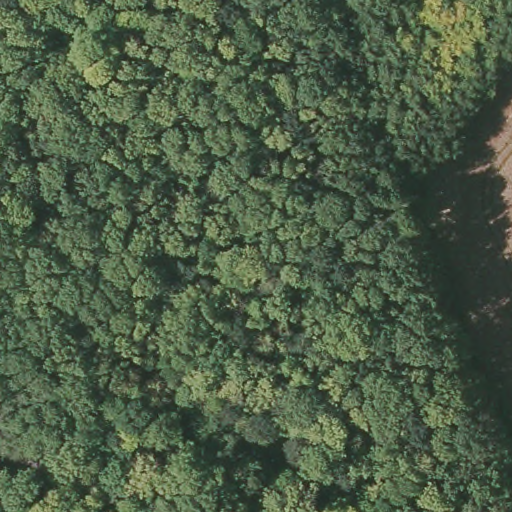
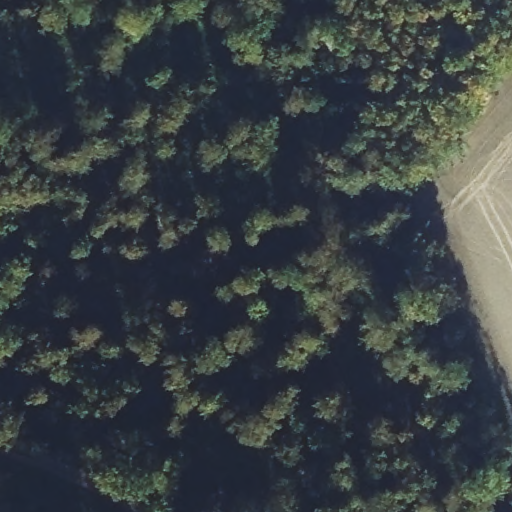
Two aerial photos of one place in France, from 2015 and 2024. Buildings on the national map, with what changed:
[]

